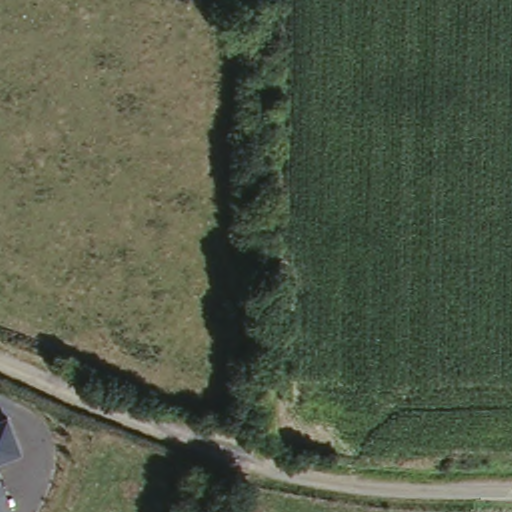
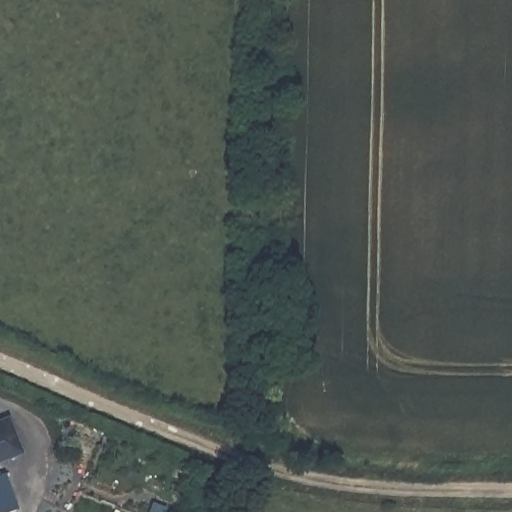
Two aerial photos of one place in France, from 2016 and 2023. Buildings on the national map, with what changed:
unchanged [(22,453),(0,462),(0,422),(11,418),(22,453)]
unchanged [(12,512),(0,512),(0,472),(14,512),(12,512)]

